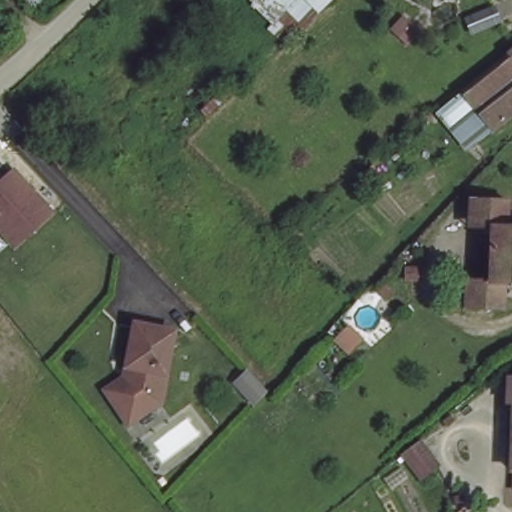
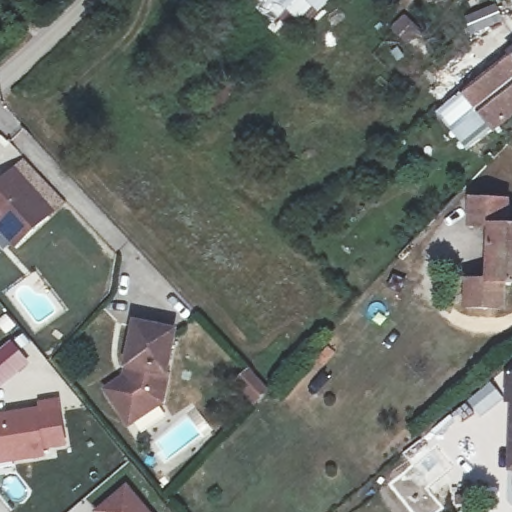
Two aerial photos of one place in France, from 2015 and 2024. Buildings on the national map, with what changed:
unchanged [(256,0),(292,0),(274,16),(256,0)]
unchanged [(274,16),(292,0),(331,0),(285,43),(269,22),(274,16)]
unchanged [(494,7),(500,21),(472,32),(467,18),(494,7)]
unchanged [(485,113),(466,91),(512,55),(512,119),(499,130),(485,113)]
unchanged [(485,113),(499,130),(477,147),(444,107),(466,91),(485,113)]
unchanged [(55,204),(18,239),(3,224),(0,220),(0,175),(13,162),(55,204)]
unchanged [(472,223),(472,194),(509,195),(509,224),(472,223)]
unchanged [(509,224),(512,224),(512,278),(507,278),(509,224)]
unchanged [(406,245),(413,251),(404,263),(394,257),(406,245)]
unchanged [(414,281),(404,281),(404,268),(414,268),(414,281)]
unchanged [(506,305),(467,306),(468,276),(507,278),(506,305)]
unchanged [(128,374),(131,363),(138,321),(178,328),(171,369),(168,372),(166,399),(124,410),(109,388),(128,374)]
new [(25,360),(0,381),(0,348),(9,341),(25,360)]
new [(8,416),(13,415),(13,413),(37,409),(38,413),(45,412),(60,409),(65,442),(50,444),(43,446),(44,453),(15,458),(0,460),(0,415),(7,414),(8,416)]
unchanged [(454,412),(461,422),(452,430),(444,421),(454,412)]
unchanged [(423,433),(442,469),(423,478),(407,446),(423,433)]
unchanged [(511,461),(512,446),(512,462),(511,461)]
unchanged [(98,510),(128,484),(152,512),(100,512),(98,510)]

